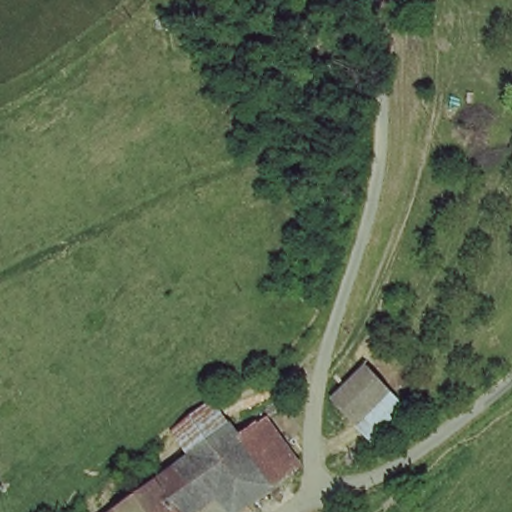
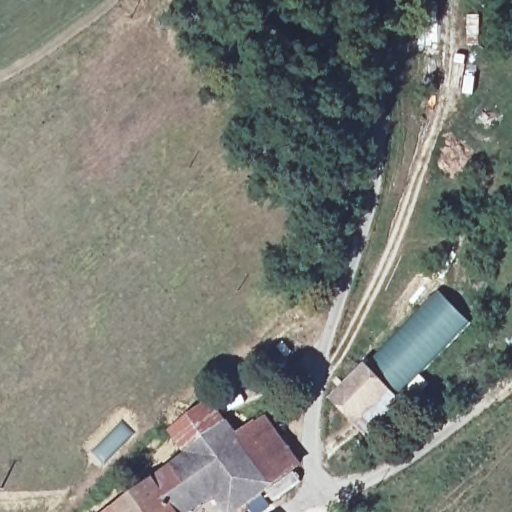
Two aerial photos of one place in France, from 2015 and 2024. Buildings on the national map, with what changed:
new [(437,288),(471,323),(401,395),(370,357),(437,288)]
unchanged [(399,407),(375,433),(344,399),(338,392),(335,389),(341,384),(356,369),(360,365),(399,407)]
unchanged [(235,424),(195,451),(189,442),(179,426),(219,401),(230,417),(235,424)]
unchanged [(235,424),(245,438),(271,420),(308,467),(247,512),(236,512),(218,490),(187,512),(105,512),(195,451),(235,424)]

